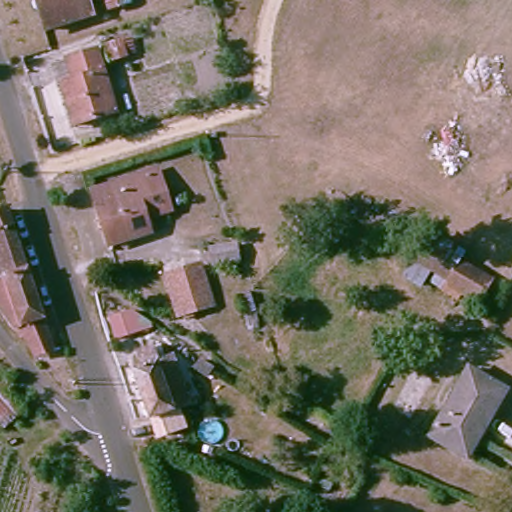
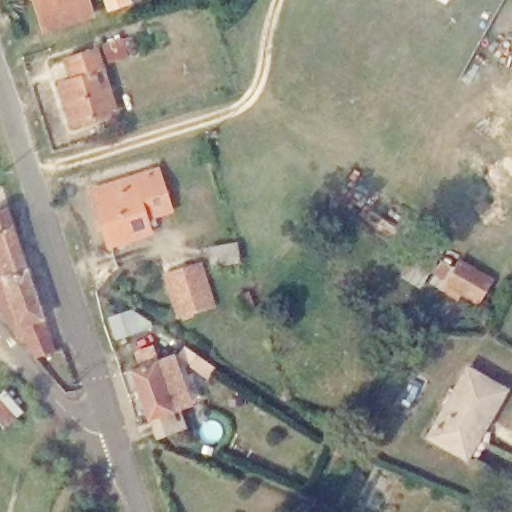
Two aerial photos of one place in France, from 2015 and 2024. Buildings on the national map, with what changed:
unchanged [(49,29),(38,0),(89,0),(94,14),(49,29)]
unchanged [(105,11),(102,0),(135,0),(135,1),(105,11)]
unchanged [(100,47),(119,110),(77,122),(65,80),(77,77),(72,55),(100,47)]
unchanged [(159,169),(171,210),(144,217),(147,229),(109,240),(94,188),(159,169)]
unchanged [(30,268),(0,279),(0,210),(10,207),(30,268)]
unchanged [(480,304),(449,287),(465,257),(496,276),(480,304)]
unchanged [(201,263),(215,303),(182,313),(169,273),(201,263)]
unchanged [(30,332),(22,337),(0,307),(0,279),(30,268),(54,340),(52,340),(55,349),(37,356),(34,346),(30,332)]
unchanged [(140,350),(122,356),(112,325),(130,320),(140,350)]
unchanged [(164,362),(175,358),(194,407),(154,420),(134,371),(144,367),(140,355),(159,348),(164,362)]
unchanged [(491,436),(480,431),(468,456),(428,437),(462,368),(511,393),(506,404),(491,436)]

